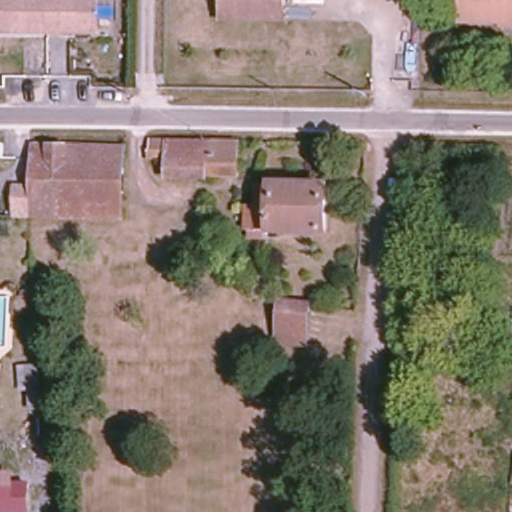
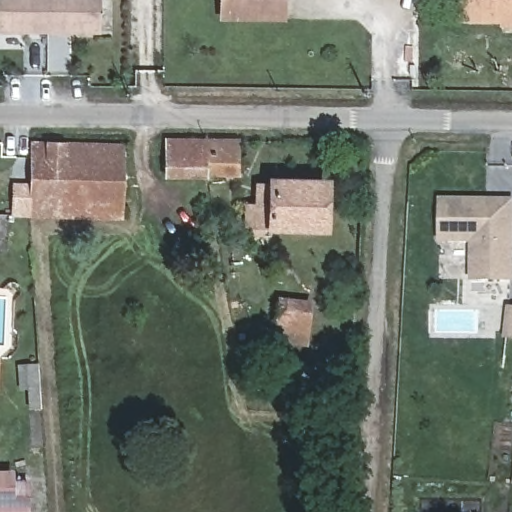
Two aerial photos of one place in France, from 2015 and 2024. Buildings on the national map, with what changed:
unchanged [(3,0),(102,0),(102,30),(67,30),(53,30),(38,30),(3,30),(3,0)]
unchanged [(225,0),(285,0),(285,21),(225,20),(225,0)]
unchanged [(453,20),(455,0),(512,0),(512,24),(453,20)]
unchanged [(239,137),(240,171),(207,170),(206,174),(170,175),(170,155),(151,155),(151,137),(169,136),(171,136),(239,137)]
unchanged [(17,187),(33,187),(33,181),(35,145),(126,149),(124,220),(46,217),(31,217),(16,216),(17,187)]
demolished [(420,181),(463,185),(461,222),(417,220),(420,181)]
unchanged [(265,233),(265,239),(253,238),(253,229),(248,229),(248,209),(261,209),(261,184),(330,184),(330,234),(265,233)]
new [(438,197),(512,199),(512,282),(468,280),(468,243),(437,242),(438,197)]
unchanged [(308,341),(279,338),(283,297),(313,300),(308,341)]
new [(506,311),(512,312),(512,339),(503,338),(506,311)]
unchanged [(0,392),(0,359),(4,360),(2,392),(0,392)]
unchanged [(26,512),(0,512),(0,480),(26,480),(26,512)]

